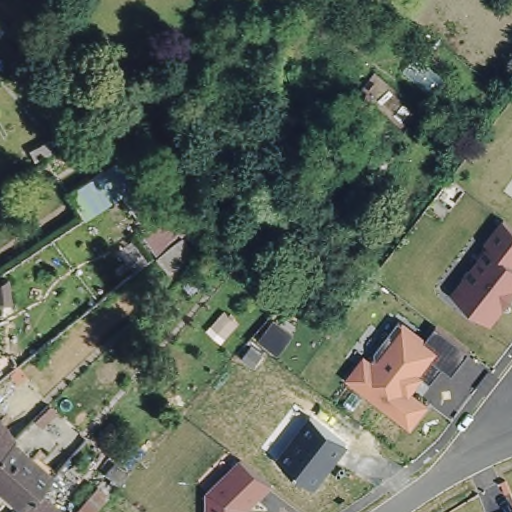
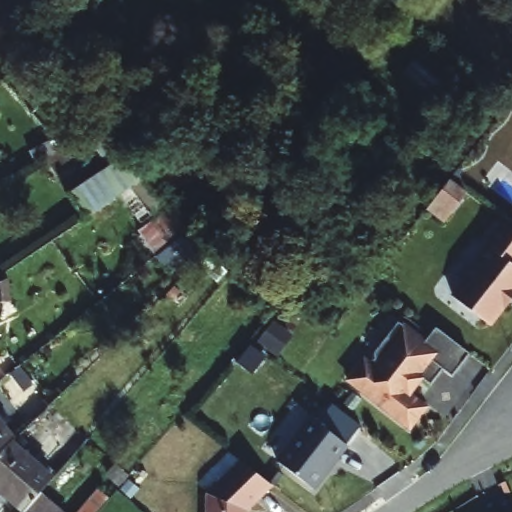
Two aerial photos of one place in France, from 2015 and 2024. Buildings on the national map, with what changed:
unchanged [(0,36),(0,35),(0,26),(5,32),(0,36)]
unchanged [(70,194),(125,156),(140,181),(83,217),(70,194)]
unchanged [(490,325),(453,295),(485,247),(477,241),(495,219),(512,232),(512,297),(490,325)]
unchanged [(427,403),(408,431),(341,382),(360,355),(373,363),(401,323),(422,338),(432,327),(465,352),(450,375),(437,366),(428,380),(422,376),(409,392),(427,403)]
unchanged [(6,428),(2,432),(0,434),(0,411),(10,424),(6,428)]
unchanged [(309,417),(348,446),(313,490),(276,460),(309,417)]
unchanged [(7,508),(0,500),(0,434),(2,432),(6,428),(42,468),(30,482),(7,508)]
unchanged [(245,512),(202,512),(202,490),(237,458),(270,485),(245,509),(245,512)]
unchanged [(6,512),(31,484),(62,510),(86,482),(97,491),(80,512),(6,512)]
unchanged [(506,512),(512,510),(512,512),(506,512)]

